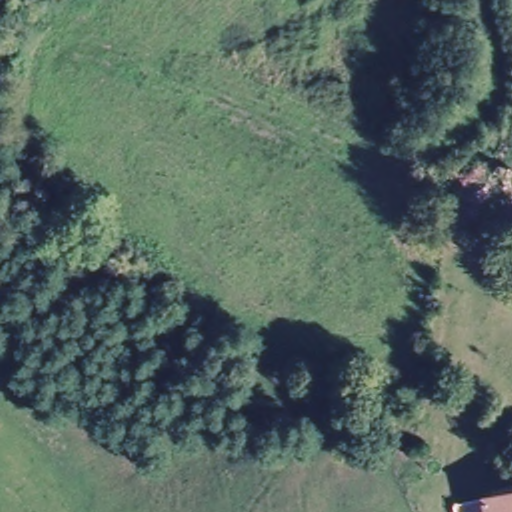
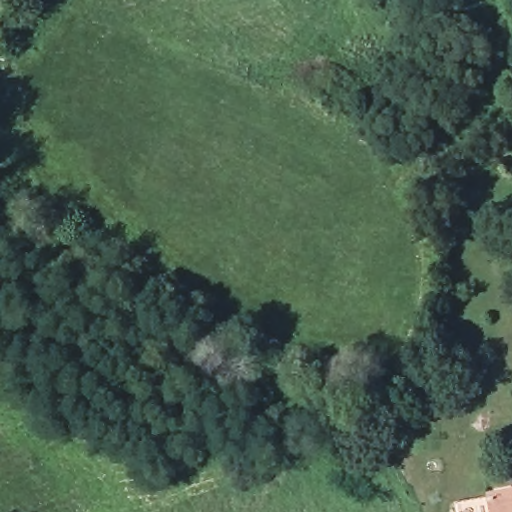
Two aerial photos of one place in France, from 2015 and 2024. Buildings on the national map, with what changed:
unchanged [(455,503),(512,492),(512,512),(457,512),(455,503)]

